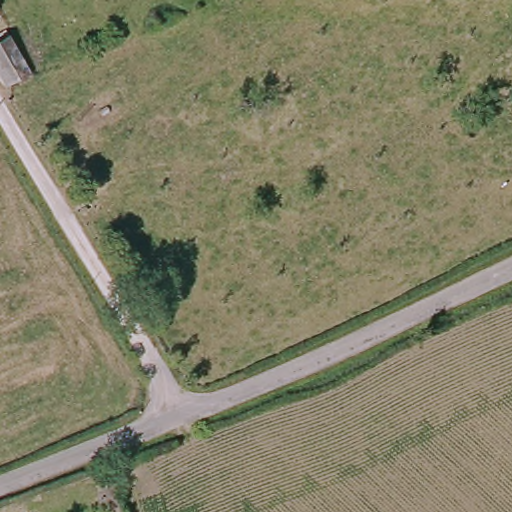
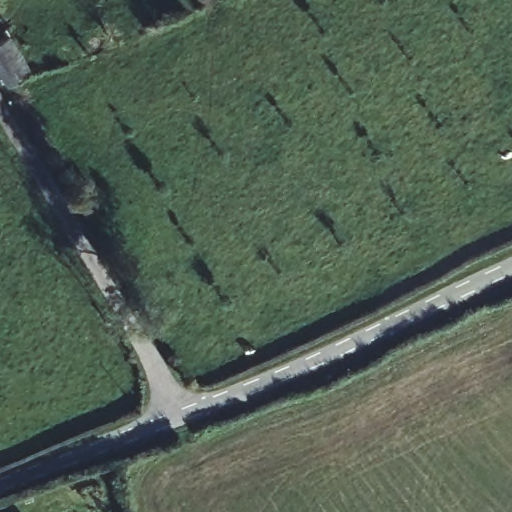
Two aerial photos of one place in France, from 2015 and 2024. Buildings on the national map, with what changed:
unchanged [(0,2),(0,0),(2,0),(0,2)]
unchanged [(0,36),(11,30),(32,70),(2,87),(0,84),(0,36)]

